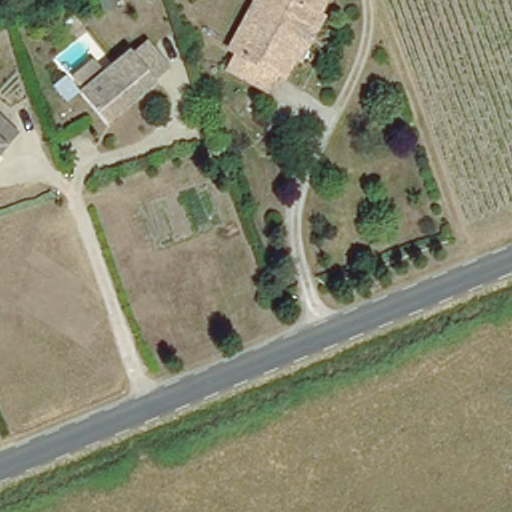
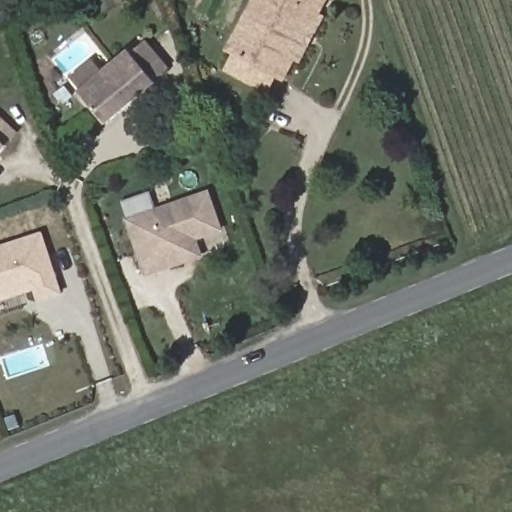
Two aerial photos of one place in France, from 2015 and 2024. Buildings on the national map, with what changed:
unchanged [(126,4),(113,9),(111,0),(125,0),(126,4)]
unchanged [(298,63),(291,59),(280,80),(273,77),(267,88),(228,67),(234,56),(228,52),(257,0),(324,0),(314,16),(321,20),(298,63)]
unchanged [(106,120),(83,87),(136,50),(139,54),(154,44),(171,69),(156,79),(159,82),(106,120)]
unchanged [(20,135),(10,146),(11,148),(0,160),(0,117),(20,135)]
new [(208,192),(222,229),(180,244),(187,261),(148,275),(129,221),(208,192)]
new [(38,232),(60,289),(40,297),(36,285),(0,298),(0,246),(38,232)]

